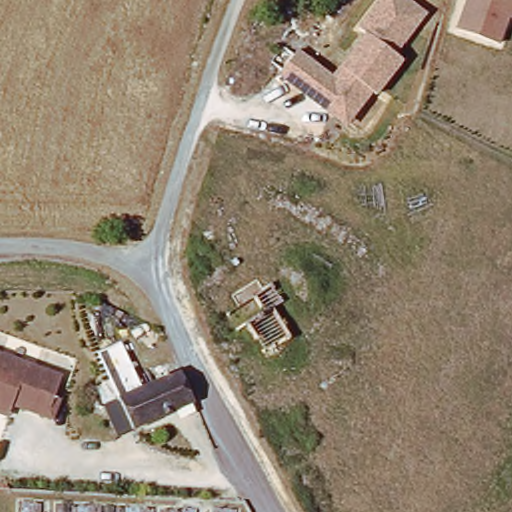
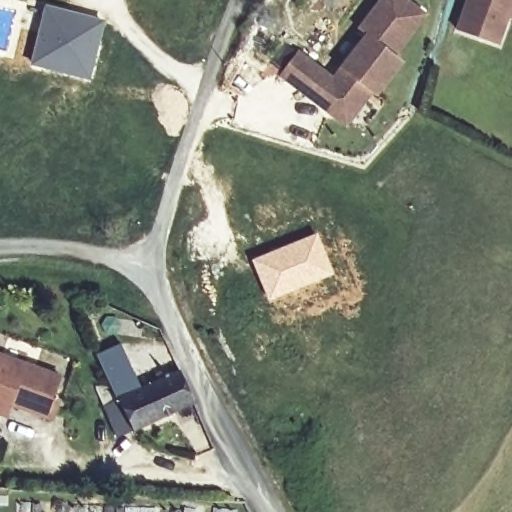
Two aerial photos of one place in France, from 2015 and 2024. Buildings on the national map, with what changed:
unchanged [(298,48),(331,74),(365,34),(355,26),(376,0),(409,0),(427,14),(397,56),(405,62),(377,97),(373,94),(345,128),(277,76),(298,48)]
unchanged [(467,0),(512,0),(512,21),(508,20),(502,45),(457,29),(467,0)]
new [(103,21),(88,79),(30,65),(45,7),(103,21)]
new [(317,231),(334,274),(268,301),(251,259),(317,231)]
demolished [(273,360),(245,315),(269,300),(278,315),(281,313),(300,343),(273,360)]
unchanged [(60,374),(46,414),(43,413),(28,409),(10,403),(6,415),(0,413),(0,355),(48,370),(60,374)]
unchanged [(119,399),(181,371),(195,403),(132,430),(119,399)]

